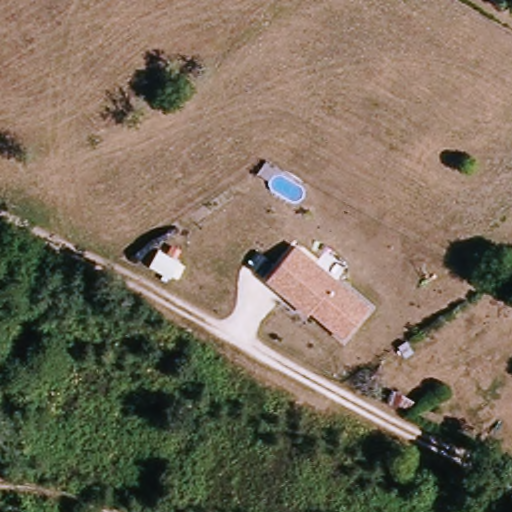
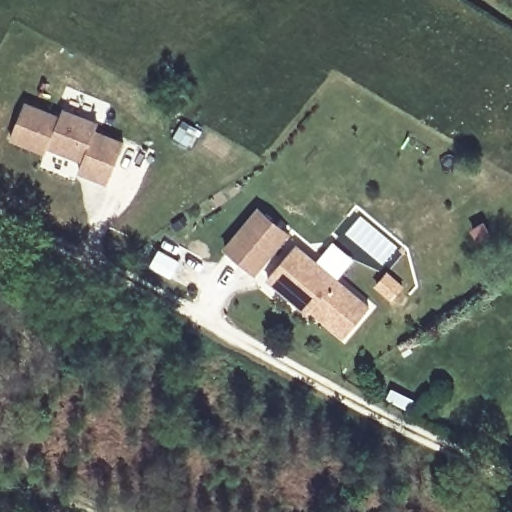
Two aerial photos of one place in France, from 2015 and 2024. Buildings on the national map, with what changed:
new [(58,115),(61,108),(98,123),(94,131),(124,143),(107,185),(77,173),(81,161),(48,149),(45,155),(9,141),(24,103),(58,115)]
new [(258,207),(291,233),(255,275),(224,248),(258,207)]
unchanged [(298,244),(373,306),(346,338),(310,308),(307,311),(269,277),(298,244)]

